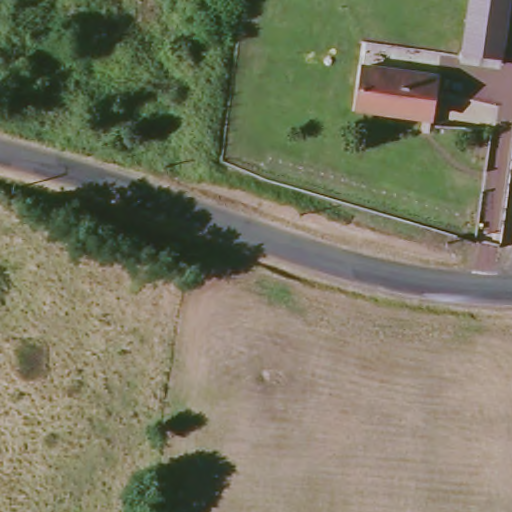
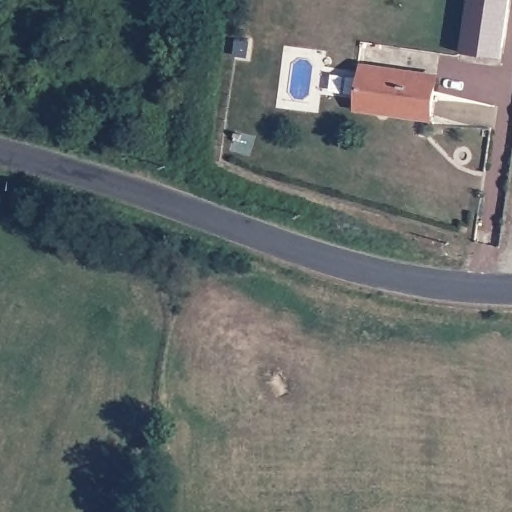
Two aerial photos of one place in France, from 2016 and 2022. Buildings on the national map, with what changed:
unchanged [(464,0),(505,0),(496,63),(456,57),(464,0)]
unchanged [(430,77),(425,117),(353,107),(359,66),(430,77)]

